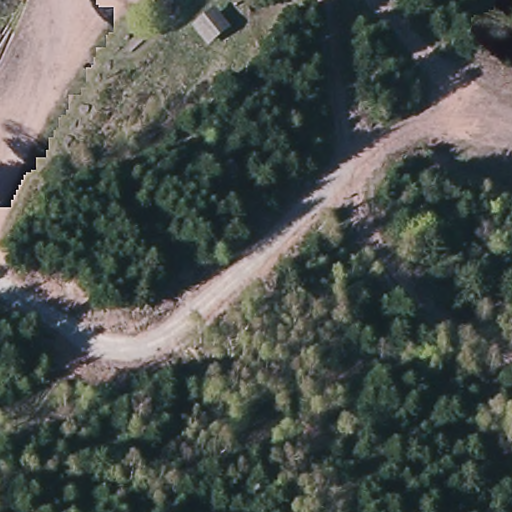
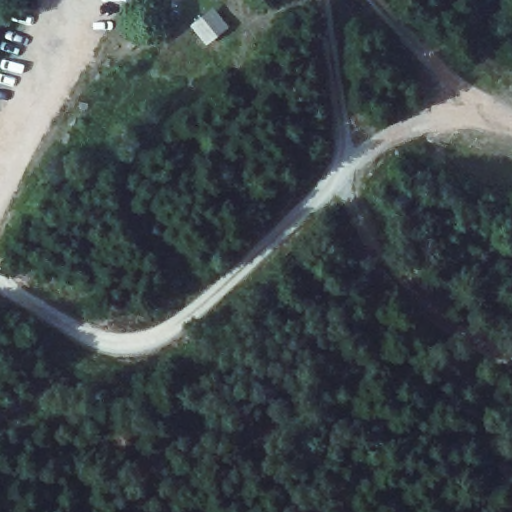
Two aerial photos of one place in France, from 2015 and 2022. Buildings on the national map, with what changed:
unchanged [(231,18),(211,39),(196,27),(216,5),(231,18)]

